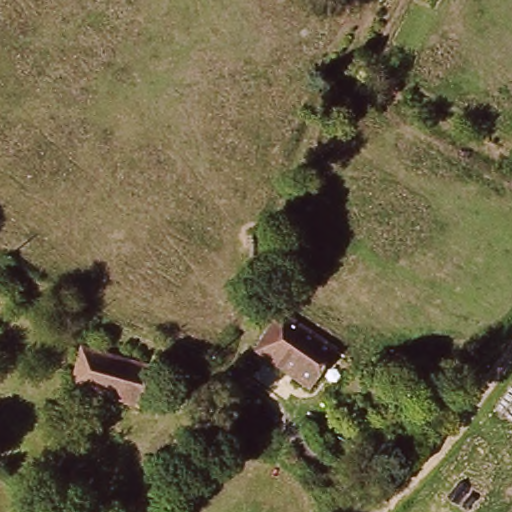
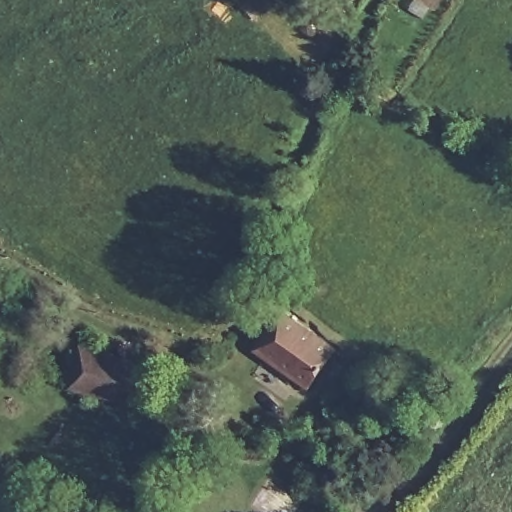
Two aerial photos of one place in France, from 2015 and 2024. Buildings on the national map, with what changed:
unchanged [(310,387),(253,351),(278,312),(330,352),(310,387)]
unchanged [(74,392),(81,353),(150,365),(143,405),(74,392)]

